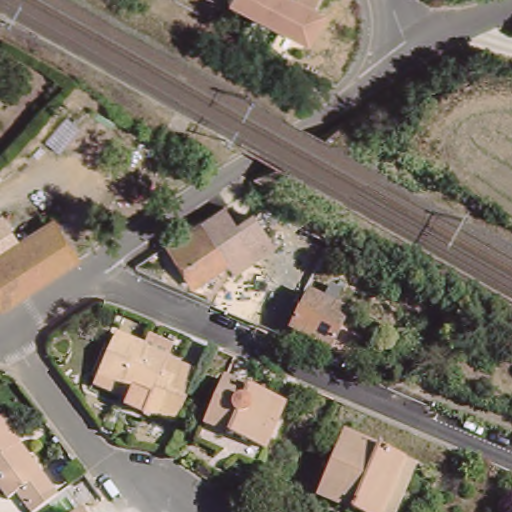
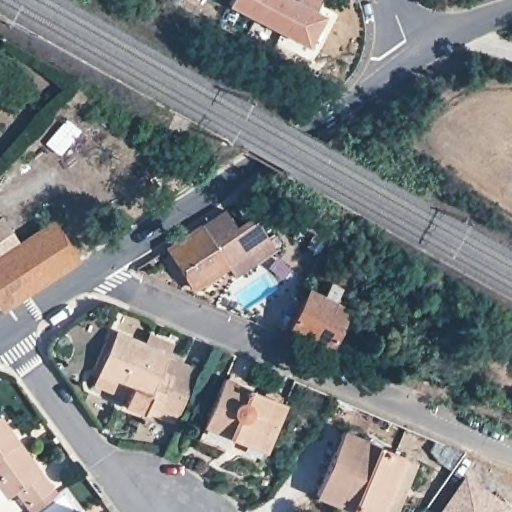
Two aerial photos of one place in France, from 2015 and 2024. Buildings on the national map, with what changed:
unchanged [(255,18),(228,4),(231,0),(264,0),(255,18)]
unchanged [(325,15),(308,46),(255,18),(264,0),(318,0),(313,9),(325,15)]
unchanged [(0,312),(0,224),(2,222),(18,248),(53,226),(77,264),(1,314),(0,312)]
unchanged [(225,286),(229,292),(195,314),(169,273),(230,234),(242,253),(228,262),(238,277),(225,286)]
unchanged [(328,357),(290,337),(309,300),(323,307),(331,293),(342,298),(334,313),(348,320),(328,357)]
unchanged [(151,422),(150,427),(123,416),(126,408),(92,393),(115,341),(143,353),(147,342),(173,353),(168,364),(167,367),(198,380),(192,394),(175,433),(151,422)]
unchanged [(265,455),(204,429),(223,384),(283,409),(265,455)]
unchanged [(7,509),(0,499),(0,427),(20,453),(41,482),(53,498),(57,504),(47,512),(23,512),(16,502),(7,509)]
unchanged [(344,436),(405,462),(415,466),(396,512),(344,512),(317,500),(344,436)]
new [(508,504),(503,512),(437,512),(464,473),(508,504)]

